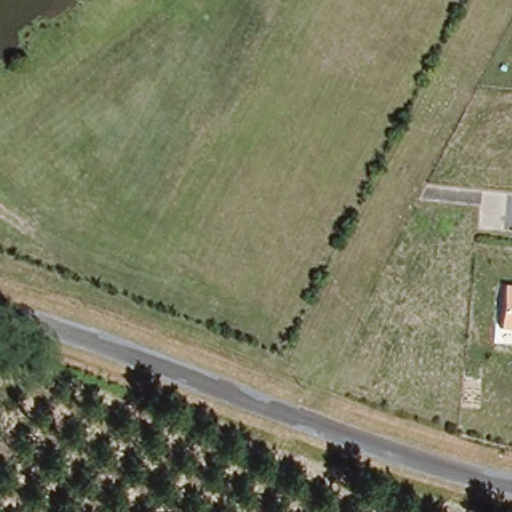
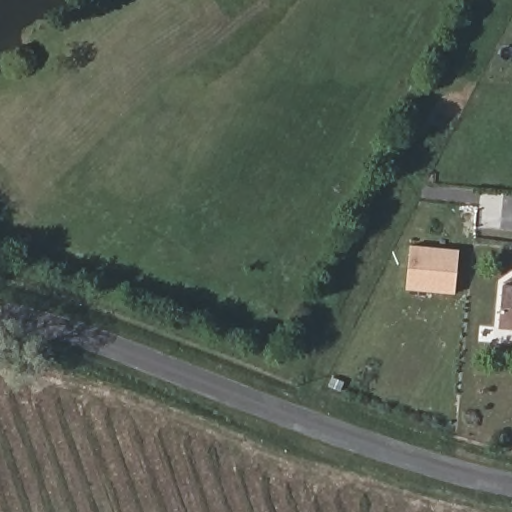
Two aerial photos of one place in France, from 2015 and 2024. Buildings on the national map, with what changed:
new [(459,250),(455,293),(405,289),(410,245),(459,250)]
unchanged [(501,286),(512,286),(512,331),(496,329),(501,286)]

